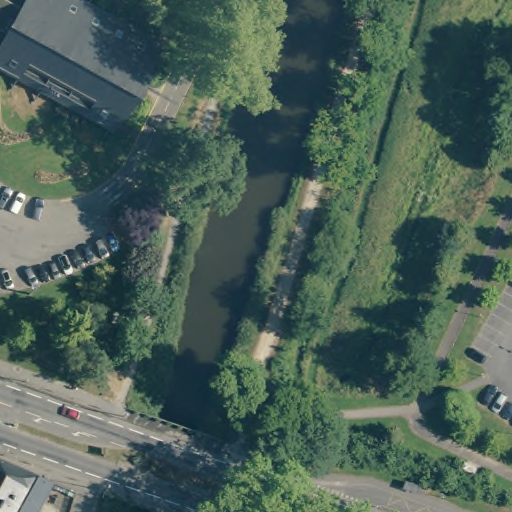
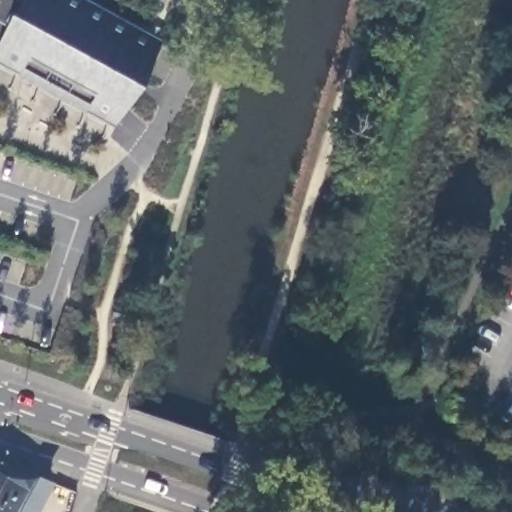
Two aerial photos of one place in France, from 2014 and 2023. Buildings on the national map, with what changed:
unchanged [(0,42),(0,0),(27,0),(0,42)]
unchanged [(27,0),(64,0),(155,49),(115,122),(0,58),(0,42),(27,0)]
unchanged [(0,512),(0,459),(26,472),(52,483),(36,512),(0,512)]

